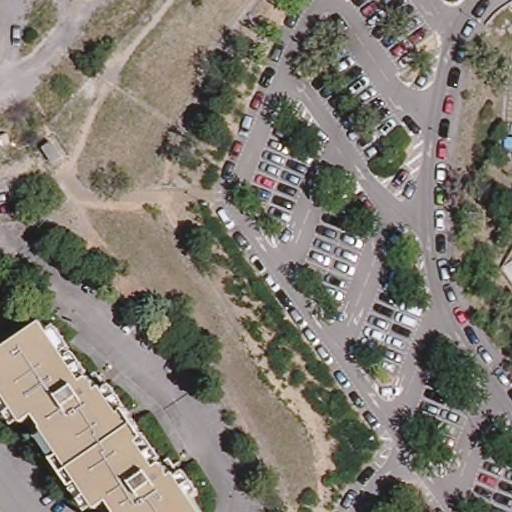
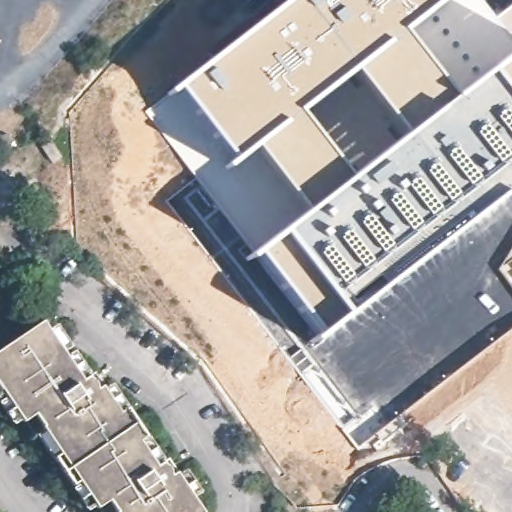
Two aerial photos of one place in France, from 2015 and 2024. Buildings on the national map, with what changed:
new [(405,32),(455,96),(405,134),(355,69),(301,111),(352,175),(307,210),(254,142),(234,158),(178,85),(286,0),(447,0),(405,32)]
new [(405,32),(447,0),(480,0),(495,17),(512,40),(512,41),(512,52),(455,96),(405,32)]
new [(495,17),(512,5),(512,40),(495,17)]
new [(254,251),(307,210),(512,52),(512,189),(322,337),(254,251)]
new [(352,175),(301,111),(355,69),(405,134),(352,175)]
new [(254,142),(307,210),(254,251),(146,110),(168,92),(178,85),(234,158),(254,142)]
unchanged [(10,145),(0,147),(0,136),(8,134),(10,145)]
unchanged [(52,163),(42,147),(51,141),(62,157),(52,163)]
unchanged [(5,265),(9,302),(0,303),(0,266),(5,265)]
unchanged [(41,451),(33,439),(30,440),(22,426),(20,428),(18,425),(11,429),(4,418),(0,411),(0,406),(4,403),(0,397),(0,354),(41,327),(47,336),(52,332),(67,354),(61,357),(65,363),(70,359),(77,370),(84,380),(77,384),(79,387),(94,379),(101,392),(100,393),(102,396),(108,391),(116,403),(123,415),(121,416),(139,444),(141,443),(150,456),(158,469),(165,464),(173,478),(171,479),(173,483),(179,478),(186,490),(193,500),(187,504),(191,512),(90,512),(90,511),(89,512),(80,512),(75,504),(67,492),(59,478),(50,465),(41,451)]

